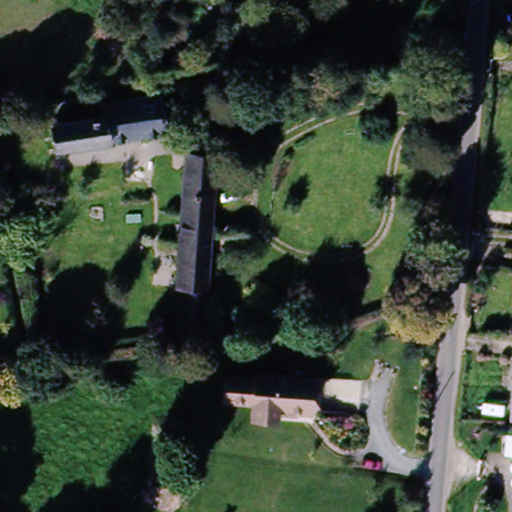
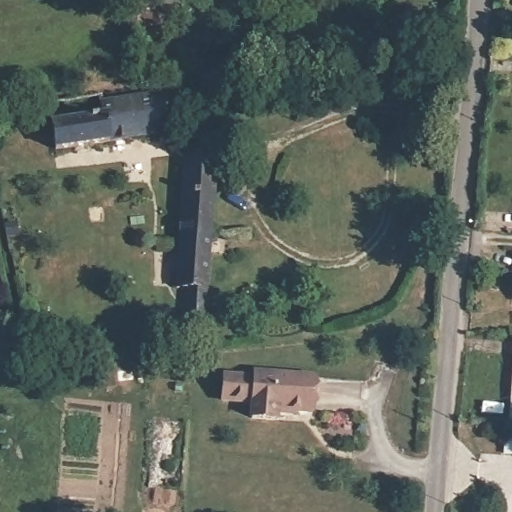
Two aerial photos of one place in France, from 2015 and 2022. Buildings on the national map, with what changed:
unchanged [(105,108),(160,100),(165,139),(110,146),(106,122),(105,108)]
unchanged [(110,146),(55,155),(52,130),(106,122),(110,146)]
unchanged [(190,288),(176,287),(186,153),(216,156),(205,326),(188,325),(190,288)]
unchanged [(221,374),(251,378),(260,371),(314,374),(311,413),(276,411),(273,421),(246,420),(246,408),(218,405),(221,374)]
unchanged [(512,413),(512,419),(511,419),(512,413)]

